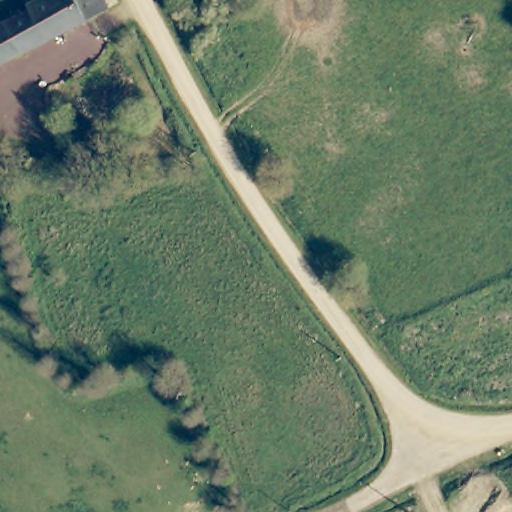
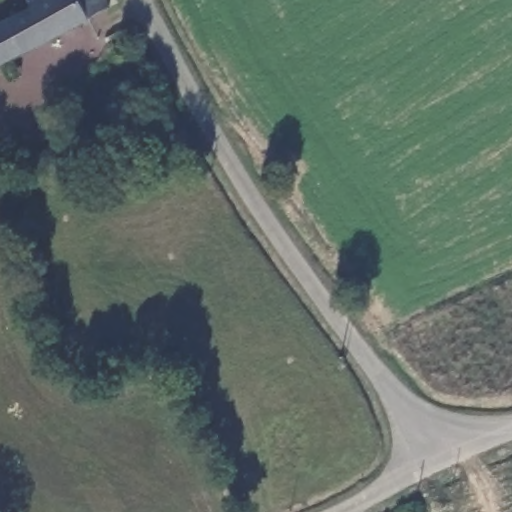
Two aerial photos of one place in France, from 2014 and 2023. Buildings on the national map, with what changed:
unchanged [(25,0),(107,0),(110,8),(105,11),(0,65),(0,26),(30,11),(25,0)]

